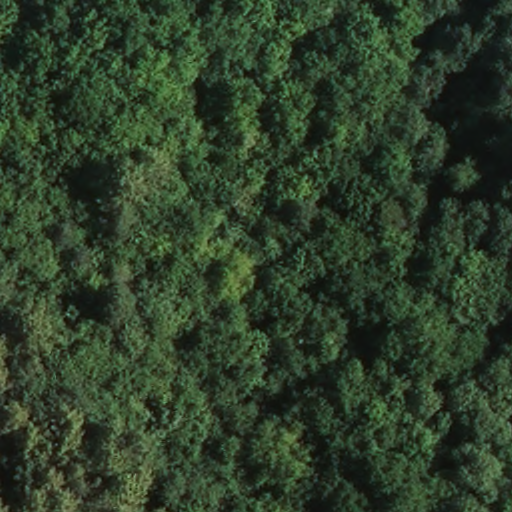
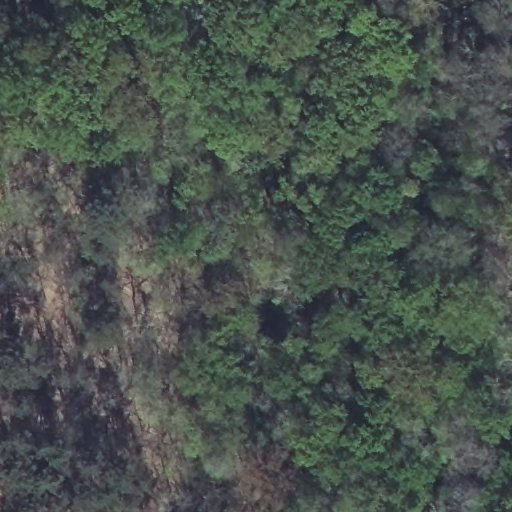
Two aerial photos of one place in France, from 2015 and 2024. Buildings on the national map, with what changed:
[]

